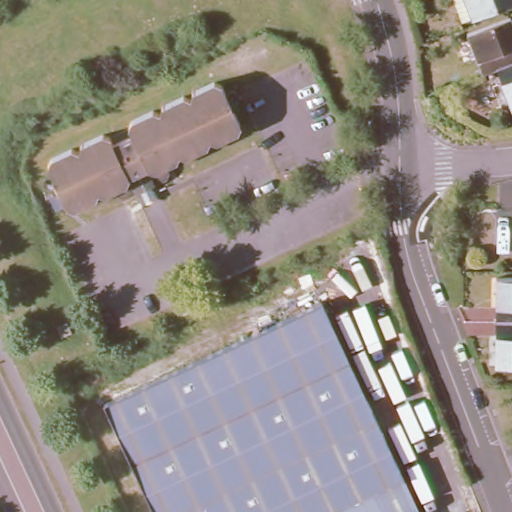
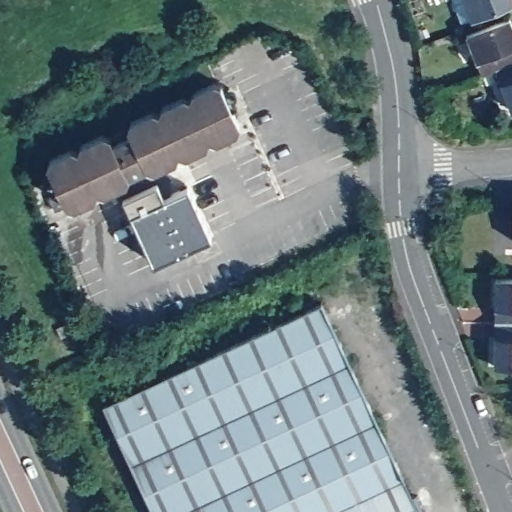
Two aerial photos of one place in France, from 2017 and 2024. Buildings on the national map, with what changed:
unchanged [(507,2),(463,19),(456,0),(506,0),(507,2)]
unchanged [(473,35),(512,20),(512,66),(501,70),(488,75),(473,35)]
unchanged [(501,70),(512,66),(512,101),(501,70)]
unchanged [(123,195),(115,192),(112,187),(103,191),(95,187),(93,196),(72,205),(65,200),(47,165),(50,155),(71,145),(78,148),(81,140),(102,131),(110,134),(130,125),(130,117),(153,107),(160,110),(162,103),(183,94),(190,96),(192,90),(212,80),(222,85),(240,123),(237,131),(215,140),(208,137),(207,144),(185,154),(178,151),(176,159),(165,163),(167,170),(165,176),(150,183),(155,195),(145,200),(140,187),(123,195)]
new [(158,180),(165,195),(187,185),(211,235),(154,261),(123,195),(140,187),(150,183),(158,180)]
unchanged [(500,280),(512,280),(512,324),(500,323),(500,280)]
unchanged [(335,329),(222,346),(326,305),(335,329)]
unchanged [(499,366),(500,323),(512,324),(512,366),(499,366)]
unchanged [(150,512),(97,400),(222,346),(335,329),(379,426),(188,512),(150,512)]
unchanged [(392,452),(262,512),(188,512),(379,426),(392,452)]
unchanged [(415,502),(420,512),(262,512),(392,452),(415,502)]

